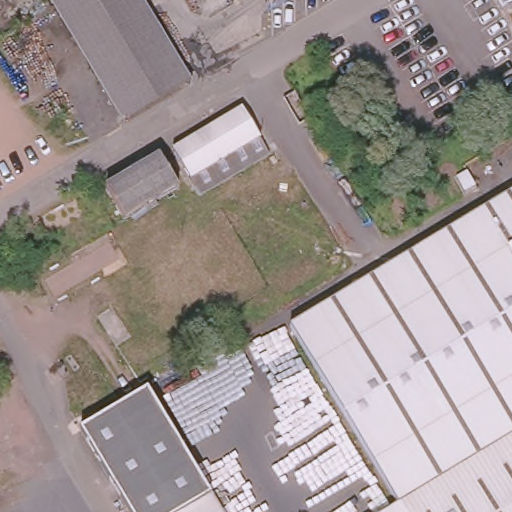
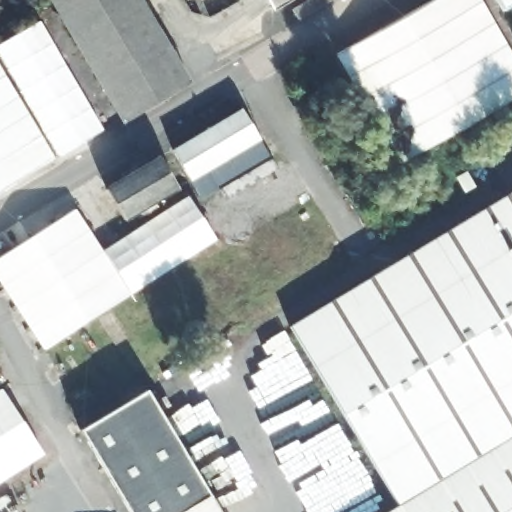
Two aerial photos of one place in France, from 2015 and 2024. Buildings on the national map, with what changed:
unchanged [(122,118),(52,0),(137,0),(185,82),(122,118)]
unchanged [(263,0),(280,0),(267,7),(263,0)]
new [(481,0),(512,54),(512,98),(398,162),(337,55),(430,0),(481,0)]
unchanged [(496,0),(509,0),(500,6),(496,0)]
new [(57,153),(0,56),(0,46),(40,25),(104,126),(57,153)]
new [(0,184),(0,67),(51,156),(0,184)]
unchanged [(238,107),(260,145),(191,184),(169,147),(238,107)]
unchanged [(160,160),(177,190),(125,220),(108,191),(160,160)]
unchanged [(471,512),(405,512),(292,320),(512,192),(512,488),(471,512)]
new [(219,242),(132,293),(105,251),(191,199),(219,242)]
new [(44,353),(0,283),(0,259),(76,212),(128,298),(44,353)]
unchanged [(75,425),(139,387),(183,461),(206,499),(214,512),(127,512),(119,499),(75,425)]
new [(0,484),(0,390),(44,457),(0,484)]
unchanged [(512,488),(512,512),(471,512),(512,488)]
unchanged [(405,512),(388,512),(400,504),(405,512)]

